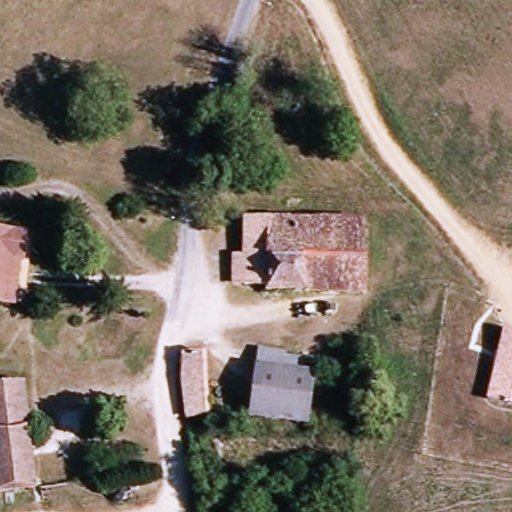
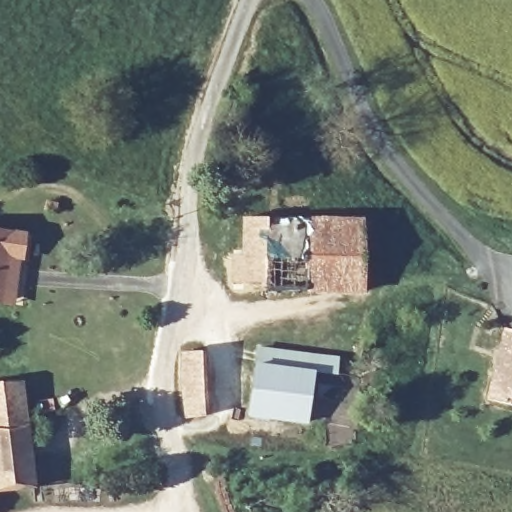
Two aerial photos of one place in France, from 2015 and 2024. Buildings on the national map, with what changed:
unchanged [(225,266),(240,266),(237,222),(355,226),(359,292),(262,295),(260,289),(240,289),(224,289),(225,266)]
unchanged [(8,303),(1,303),(0,303),(0,233),(20,235),(18,258),(10,258),(10,267),(8,303)]
unchanged [(512,406),(487,400),(506,329),(512,331),(512,406)]
unchanged [(252,337),(277,340),(276,344),(333,349),(332,366),(310,364),(307,412),(246,410),(252,337)]
unchanged [(200,416),(185,420),(179,355),(197,355),(200,416)]
unchanged [(34,488),(0,492),(0,387),(20,385),(34,488)]

